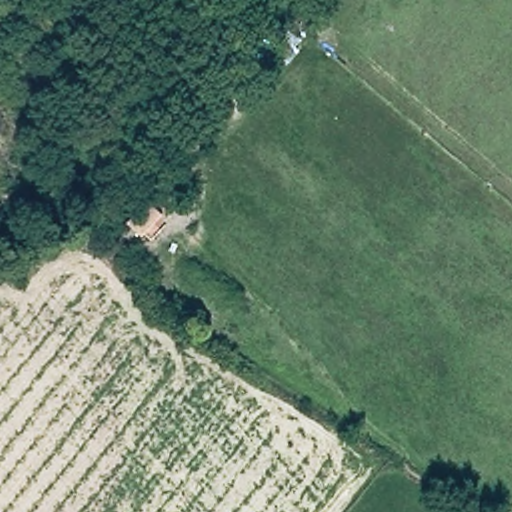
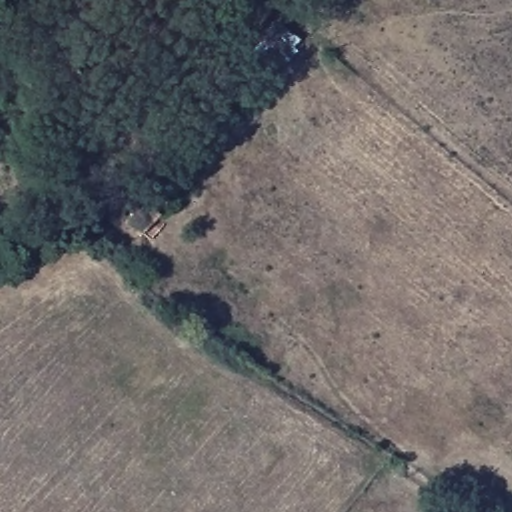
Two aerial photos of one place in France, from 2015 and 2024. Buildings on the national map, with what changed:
unchanged [(123,219),(165,190),(183,210),(142,239),(123,219)]

